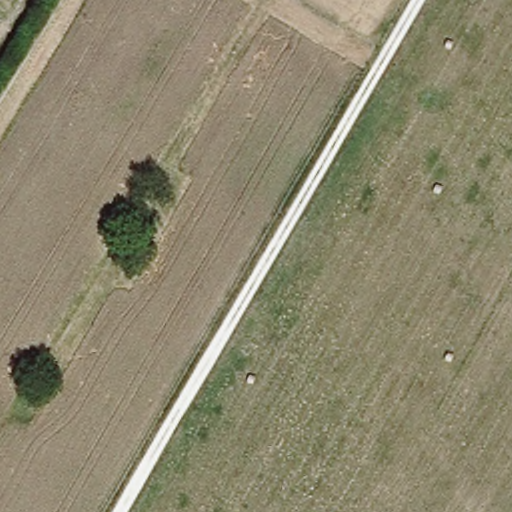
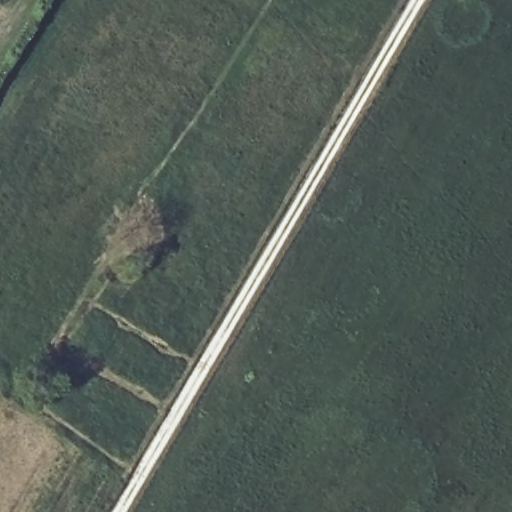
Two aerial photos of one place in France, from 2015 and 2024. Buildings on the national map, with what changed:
[]

